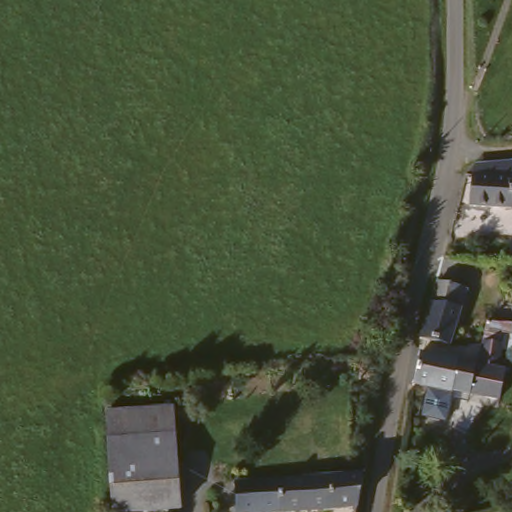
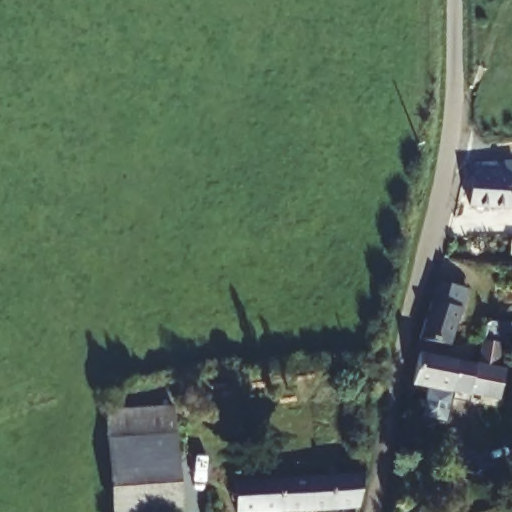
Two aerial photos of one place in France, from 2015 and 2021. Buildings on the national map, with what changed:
unchanged [(507,212),(462,210),(462,192),(466,191),(466,181),(474,181),(476,166),(512,164),(512,170),(510,182),(512,182),(512,213),(507,212)]
unchanged [(461,294),(449,346),(448,353),(419,346),(434,286),(461,294)]
unchanged [(491,405),(462,398),(447,395),(446,395),(445,396),(439,395),(407,388),(414,360),(446,366),(470,370),(472,364),(479,347),(484,332),(505,340),(512,343),(512,355),(511,357),(499,352),(491,373),(498,375),(491,405)]
unchanged [(169,451),(105,452),(104,440),(104,410),(167,408),(168,433),(169,451)]
unchanged [(171,512),(106,512),(106,490),(105,452),(169,451),(171,512)]
unchanged [(352,479),(347,510),(323,512),(238,512),(235,489),(352,479)]

